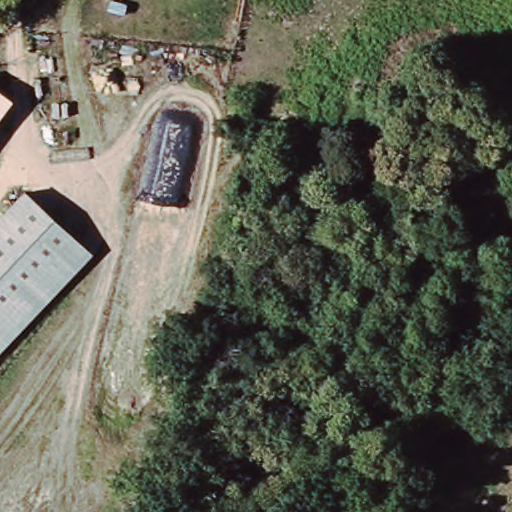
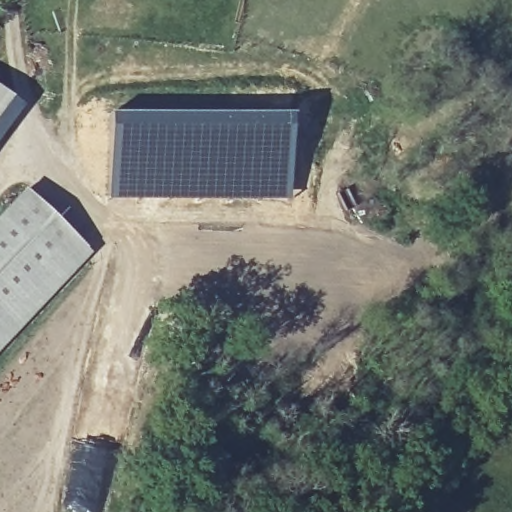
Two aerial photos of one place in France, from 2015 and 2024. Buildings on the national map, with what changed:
unchanged [(12,99),(0,115),(0,91),(12,99)]
new [(291,115),(288,202),(107,201),(107,115),(291,115)]
unchanged [(433,162),(453,170),(442,194),(422,186),(433,162)]
unchanged [(28,194),(85,242),(0,346),(0,228),(28,194)]

